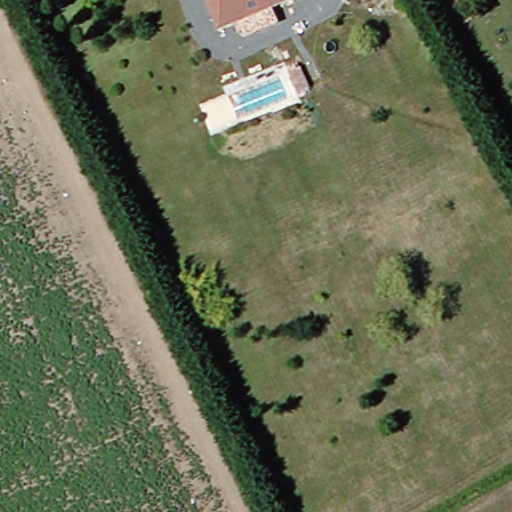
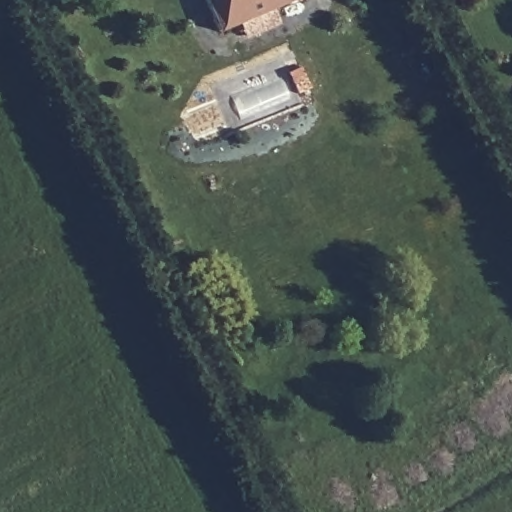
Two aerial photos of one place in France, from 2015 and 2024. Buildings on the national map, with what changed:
unchanged [(213,0),(307,0),(228,35),(213,0)]
unchanged [(293,69),(303,90),(292,95),(282,75),(293,69)]

